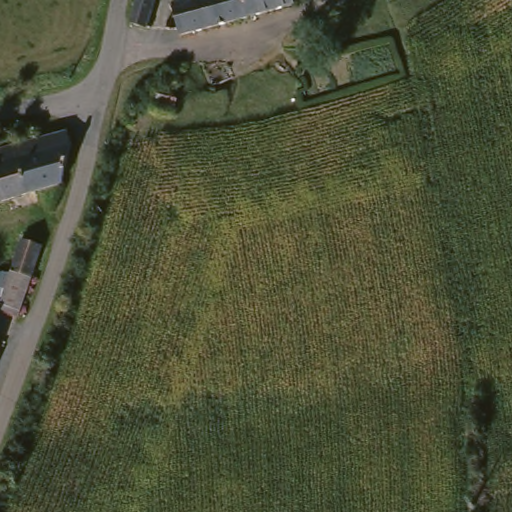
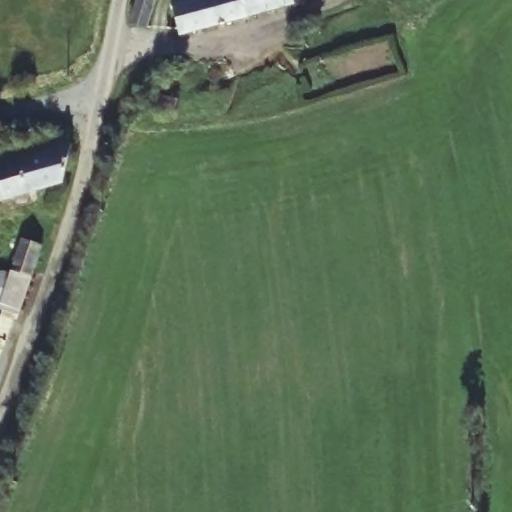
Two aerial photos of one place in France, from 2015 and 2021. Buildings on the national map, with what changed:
unchanged [(151,36),(131,27),(140,0),(164,0),(151,36)]
unchanged [(289,3),(292,12),(178,47),(171,10),(204,0),(288,0),(289,3)]
unchanged [(289,3),(288,0),(300,0),(289,3)]
unchanged [(63,145),(59,199),(0,209),(0,154),(24,150),(63,145)]
unchanged [(0,310),(11,275),(21,245),(44,251),(33,282),(18,326),(0,321),(0,310)]

